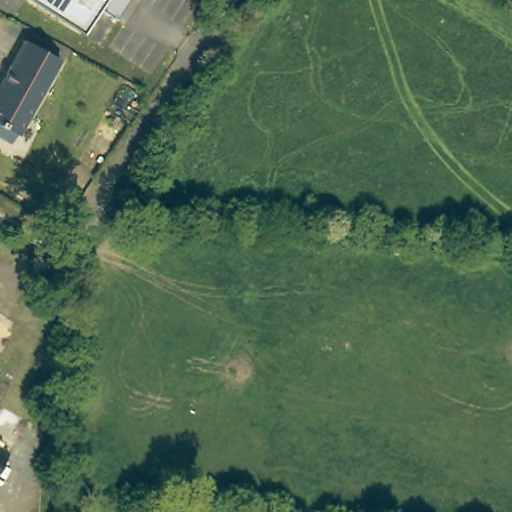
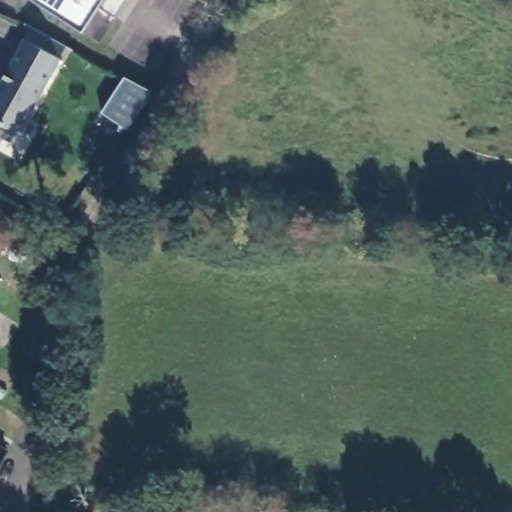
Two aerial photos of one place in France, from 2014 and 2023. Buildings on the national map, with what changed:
unchanged [(116,20),(100,10),(83,35),(30,0),(130,0),(116,20)]
unchanged [(61,59),(19,135),(17,134),(12,142),(0,135),(0,87),(26,39),(61,59)]
new [(128,130),(102,113),(124,77),(152,92),(128,130)]
unchanged [(12,445),(0,466),(0,438),(12,445)]

